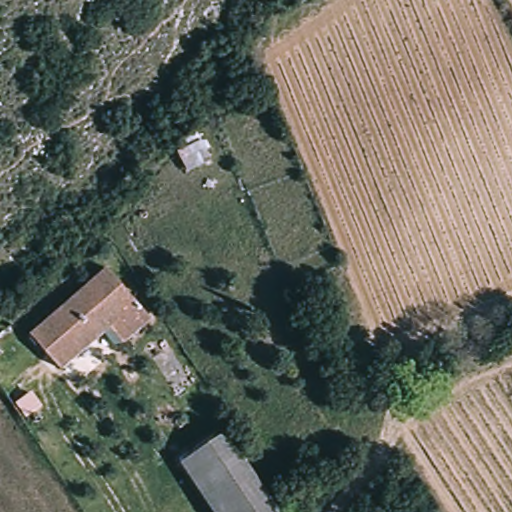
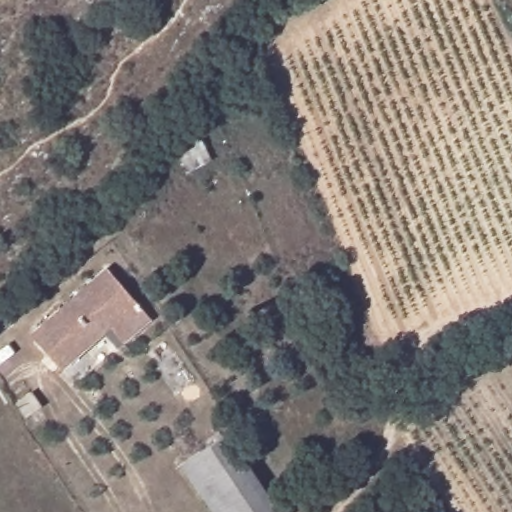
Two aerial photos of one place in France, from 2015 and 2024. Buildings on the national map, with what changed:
unchanged [(108,267),(154,320),(128,342),(116,327),(85,353),(55,312),(108,267)]
unchanged [(85,353),(61,374),(28,335),(55,312),(85,353)]
unchanged [(212,512),(180,467),(223,436),(277,512),(212,512)]

